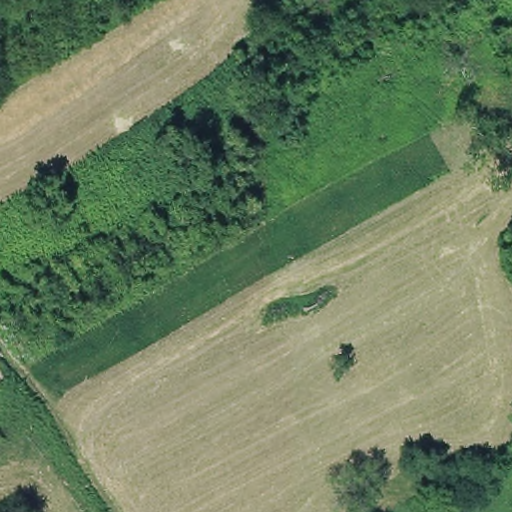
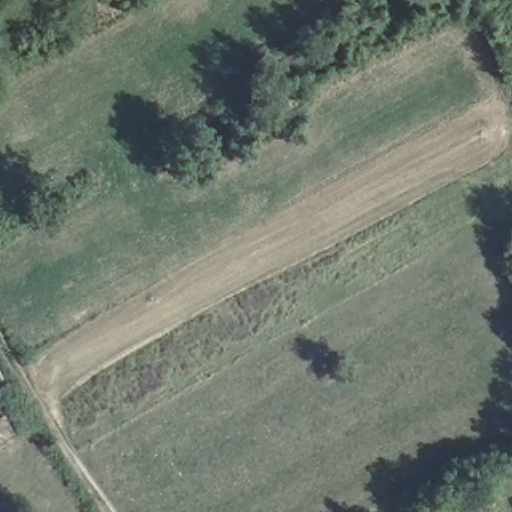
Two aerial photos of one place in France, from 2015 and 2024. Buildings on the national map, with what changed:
[]

